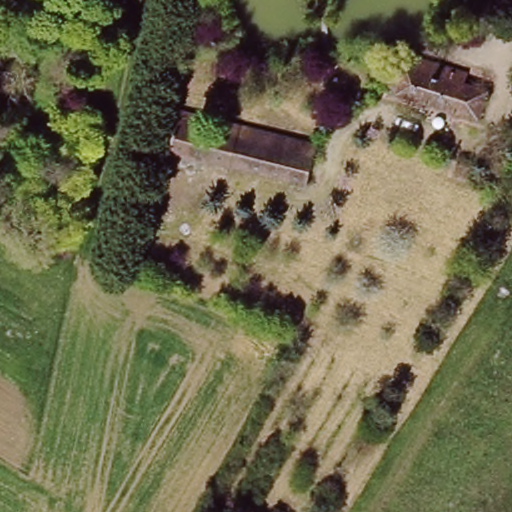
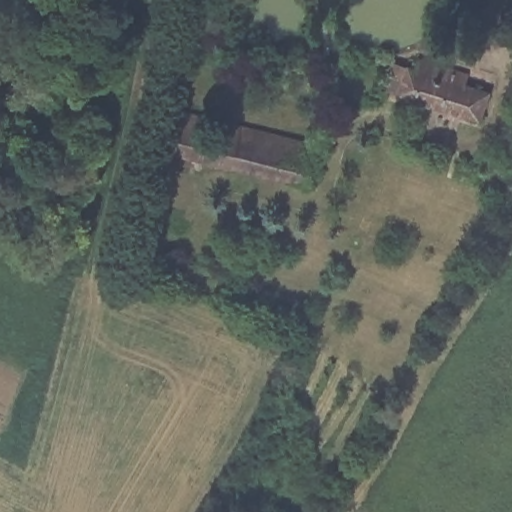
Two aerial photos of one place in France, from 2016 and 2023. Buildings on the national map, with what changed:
unchanged [(394,50),(494,82),(484,124),(382,98),(394,50)]
unchanged [(180,109),(320,141),(309,190),(167,157),(180,109)]

